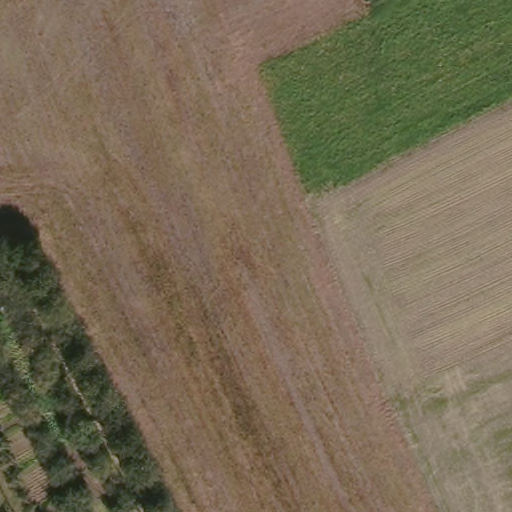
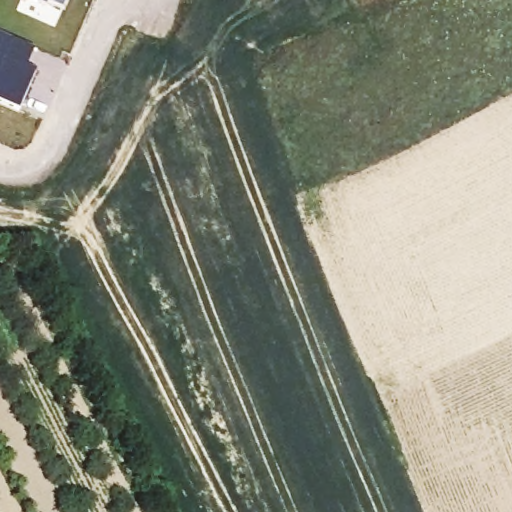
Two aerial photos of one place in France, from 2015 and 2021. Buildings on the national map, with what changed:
new [(45,3),(44,7),(28,0),(65,0),(60,10),(45,3)]
new [(6,35),(33,47),(24,67),(34,71),(17,110),(0,103),(0,33),(6,35)]

